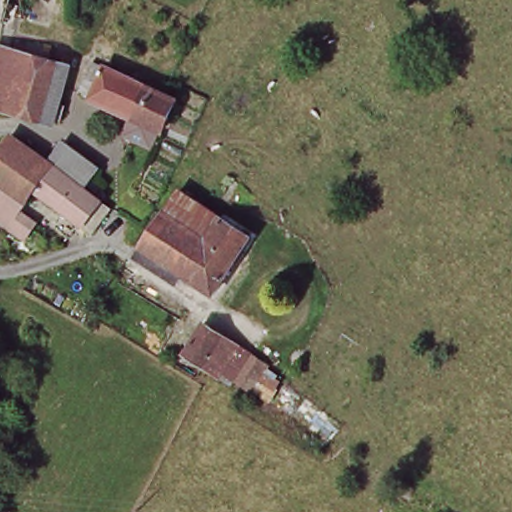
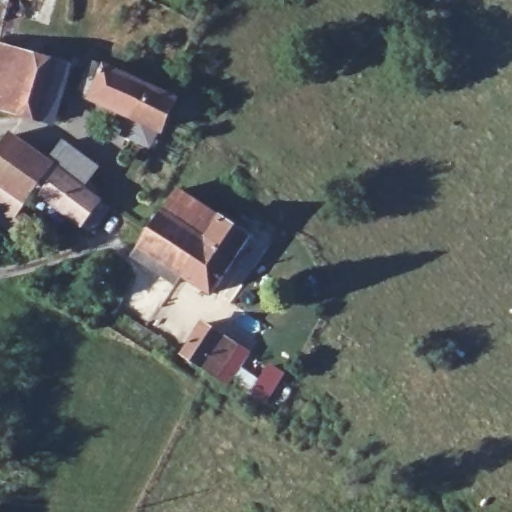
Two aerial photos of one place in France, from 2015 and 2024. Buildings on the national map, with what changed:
unchanged [(41,115),(39,121),(0,109),(0,37),(4,38),(3,46),(55,61),(46,99),(58,103),(54,118),(41,115)]
unchanged [(158,89),(153,98),(171,107),(178,111),(164,138),(85,102),(98,73),(142,94),(146,84),(158,89)]
unchanged [(0,218),(0,156),(14,137),(53,164),(64,145),(99,168),(85,188),(113,208),(93,231),(35,189),(27,200),(9,224),(0,218)]
unchanged [(181,195),(219,220),(204,241),(168,216),(181,195)]
unchanged [(250,241),(235,262),(213,295),(144,251),(168,216),(204,241),(219,220),(250,241)]
unchanged [(281,377),(266,403),(222,375),(216,382),(178,356),(201,320),(281,377)]

